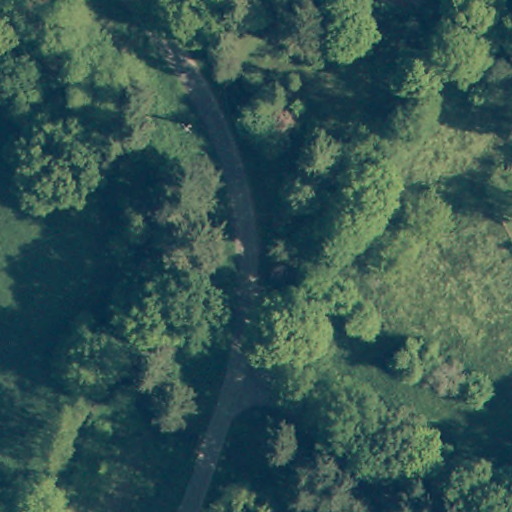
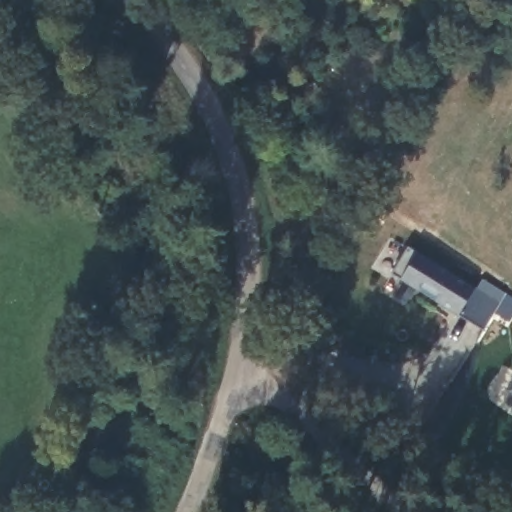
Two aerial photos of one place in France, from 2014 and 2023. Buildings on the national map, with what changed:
new [(408,247),(500,301),(482,330),(389,275),(408,247)]
new [(512,382),(512,396),(505,392),(512,382)]

